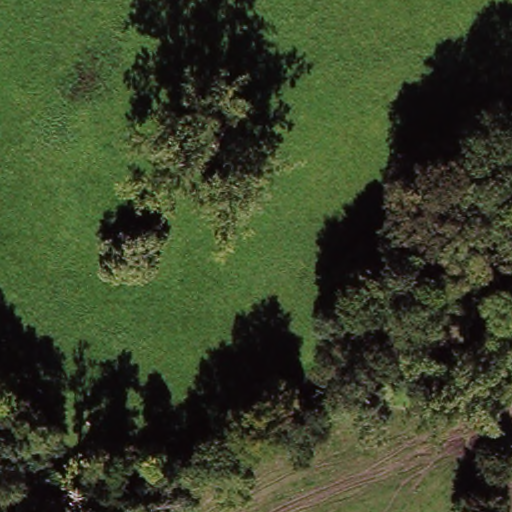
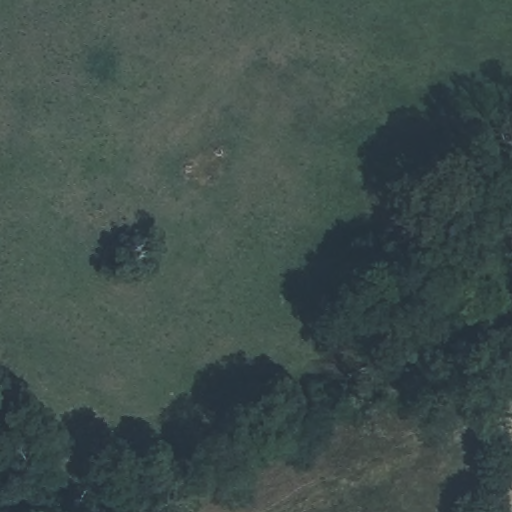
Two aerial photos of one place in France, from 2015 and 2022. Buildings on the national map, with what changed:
[]

